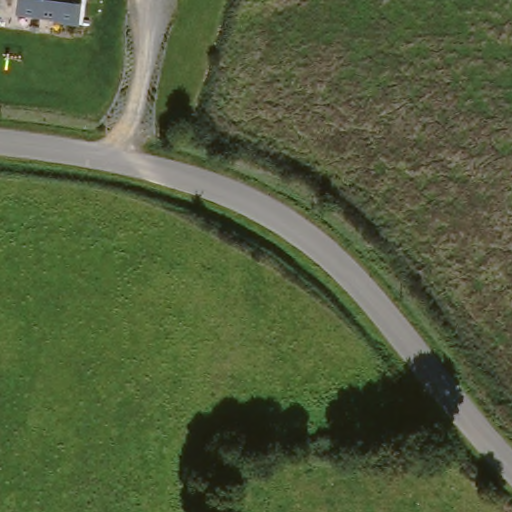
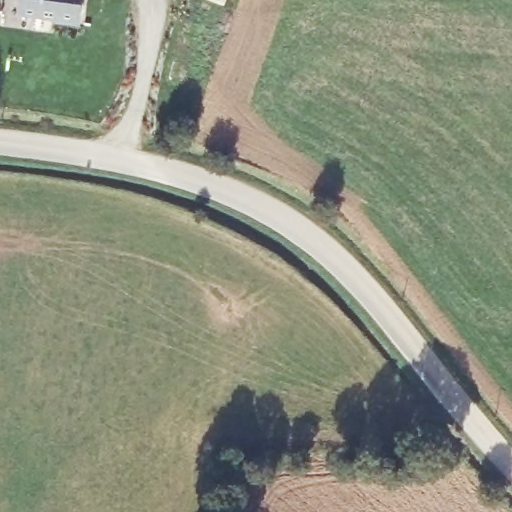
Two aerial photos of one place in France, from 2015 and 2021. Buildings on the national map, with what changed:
unchanged [(21,0),(83,0),(82,15),(59,14),(59,10),(21,8),(21,0)]

